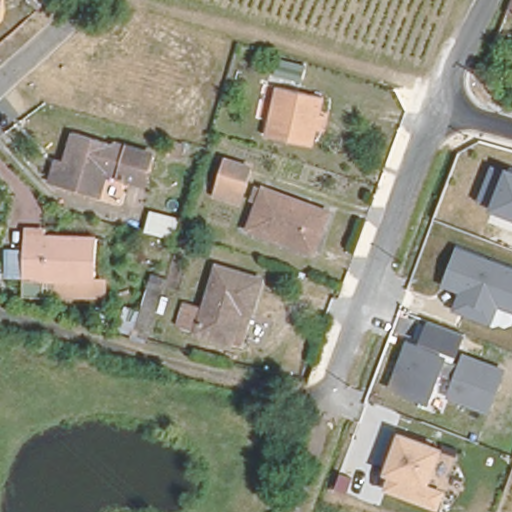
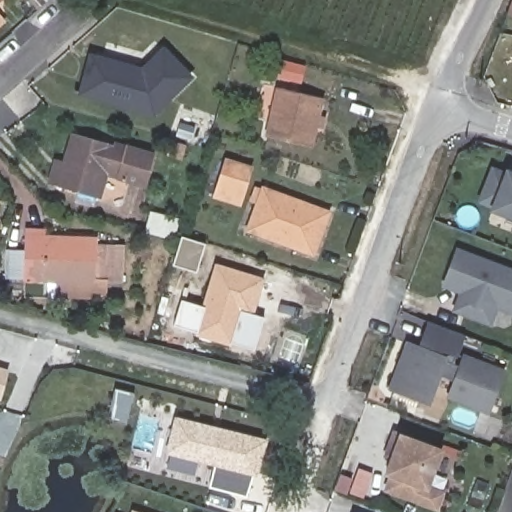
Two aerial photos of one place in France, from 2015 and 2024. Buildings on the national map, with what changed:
unchanged [(7,0),(10,3),(2,16),(0,18),(0,0),(7,0)]
unchanged [(512,0),(512,12),(505,9),(508,0),(512,0)]
demolished [(141,100),(124,81),(117,87),(90,61),(123,29),(167,74),(154,87),(141,100)]
new [(155,116),(77,95),(89,52),(142,66),(162,45),(193,77),(155,116)]
unchanged [(300,80),(275,73),(280,56),(305,63),(300,80)]
unchanged [(319,131),(312,129),(307,147),(263,136),(276,87),(320,98),(316,114),(323,116),(319,131)]
unchanged [(96,196),(96,198),(57,186),(58,182),(50,181),(55,161),(64,163),(71,133),(126,148),(153,156),(146,180),(120,173),(112,200),(96,196)]
unchanged [(239,205),(210,197),(224,155),(252,163),(239,205)]
unchanged [(492,164),(512,172),(512,215),(478,202),(492,164)]
unchanged [(313,253),(247,229),(256,203),(249,201),(255,186),(328,212),(313,253)]
unchanged [(180,216),(173,240),(142,232),(147,208),(180,216)]
unchanged [(57,301),(58,280),(32,278),(32,276),(16,275),(19,245),(35,247),(36,236),(104,240),(101,283),(102,301),(57,301)]
unchanged [(491,326),(453,313),(458,293),(443,287),(457,247),(512,268),(512,312),(500,307),(491,326)]
unchanged [(230,339),(176,323),(182,301),(202,307),(215,262),(261,276),(251,313),(249,312),(240,341),(230,339)]
new [(425,322),(459,335),(451,355),(417,342),(425,322)]
unchanged [(428,404),(386,388),(401,340),(445,356),(428,404)]
unchanged [(490,414),(447,398),(464,352),(507,369),(490,414)]
new [(5,372),(0,386),(0,370),(5,372)]
new [(210,485),(218,461),(173,446),(184,415),(265,443),(247,498),(210,485)]
unchanged [(431,487),(447,492),(439,511),(381,492),(392,458),(384,455),(393,430),(445,448),(431,487)]
new [(131,508),(142,512),(130,512),(131,508)]

